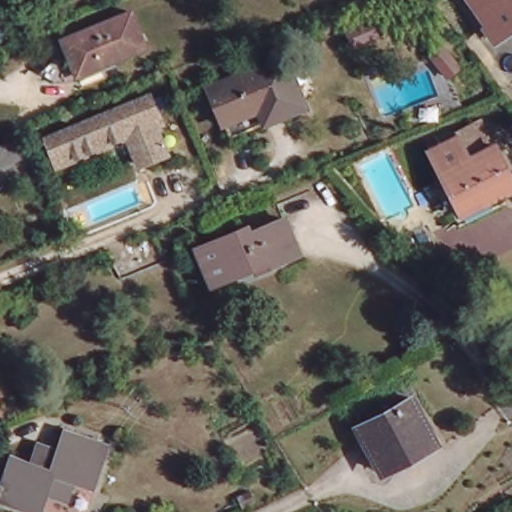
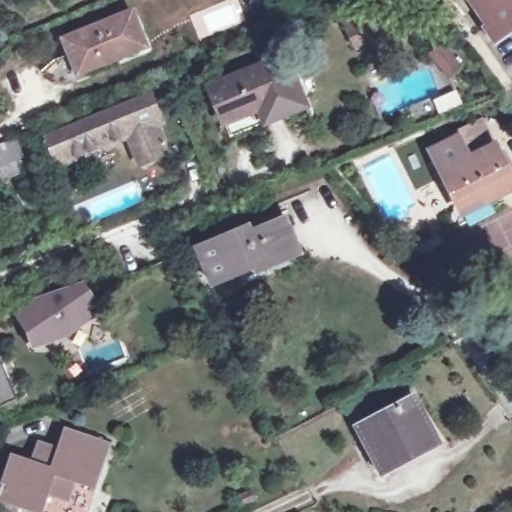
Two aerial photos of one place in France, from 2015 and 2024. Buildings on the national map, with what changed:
unchanged [(491,28),(472,0),(512,0),(512,26),(497,37),(491,28)]
unchanged [(366,11),(378,35),(355,45),(344,21),(366,11)]
unchanged [(146,46),(77,74),(63,39),(131,12),(146,46)]
unchanged [(444,45),(463,67),(452,75),(434,53),(444,45)]
unchanged [(276,66),(296,117),(256,133),(220,147),(200,97),(276,66)]
unchanged [(149,99),(158,119),(153,130),(165,158),(140,168),(128,140),(71,163),(55,169),(45,143),(60,137),(149,99)]
unchanged [(462,224),(455,209),(461,206),(433,148),(463,134),(486,123),(497,144),(499,143),(512,168),(512,191),(498,198),(500,205),(462,224)]
unchanged [(22,156),(0,165),(0,145),(15,139),(22,156)]
unchanged [(266,255),(228,270),(231,275),(211,284),(195,247),(248,225),(250,231),(284,217),(299,252),(269,264),(266,255)]
new [(43,295),(87,282),(103,310),(64,333),(36,344),(35,328),(23,311),(43,295)]
new [(0,397),(0,370),(10,393),(0,397)]
unchanged [(371,427),(364,412),(374,407),(381,421),(417,402),(439,444),(382,475),(360,432),(371,427)]
unchanged [(63,437),(59,435),(63,426),(111,442),(96,490),(83,486),(84,481),(75,479),(68,502),(47,495),(41,512),(33,512),(0,502),(0,481),(10,452),(30,459),(37,440),(59,447),(63,437)]

